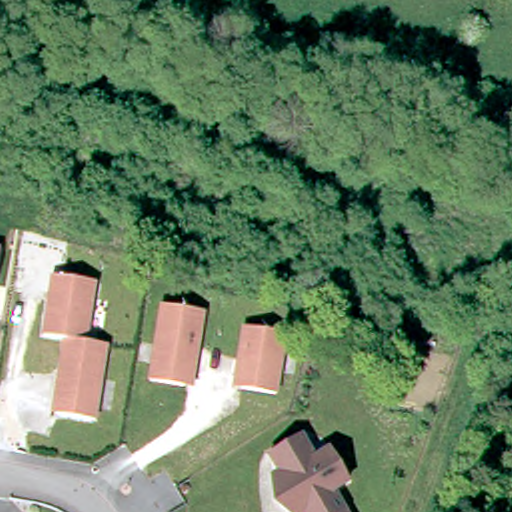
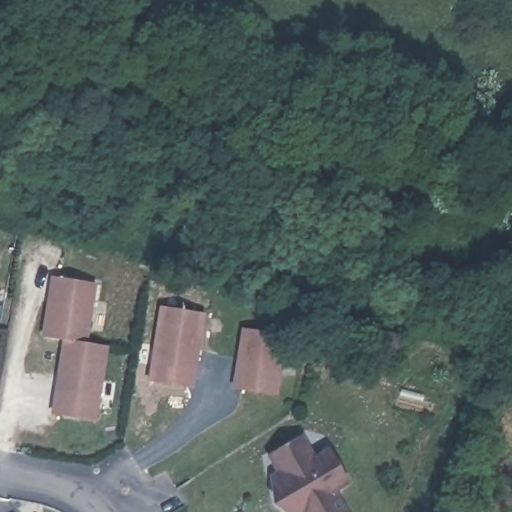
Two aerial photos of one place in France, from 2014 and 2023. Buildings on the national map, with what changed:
unchanged [(89,284),(80,343),(101,347),(89,421),(49,414),(52,399),(49,398),(59,340),(38,337),(43,304),(45,304),(50,278),(89,284)]
unchanged [(203,319),(193,378),(186,377),(183,392),(149,387),(161,313),(203,319)]
unchanged [(279,341),(271,401),(236,395),(238,379),(233,379),(235,367),(233,367),(238,334),(279,341)]
unchanged [(278,503),(273,479),(269,458),(269,457),(301,438),(309,452),(308,459),(314,461),(330,452),(349,483),(333,492),(345,512),(288,512),(278,503)]

